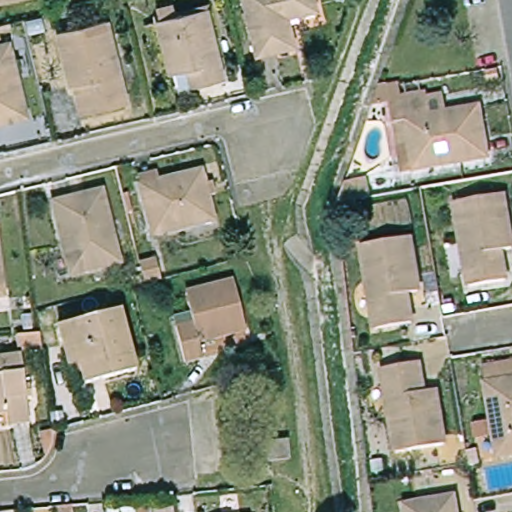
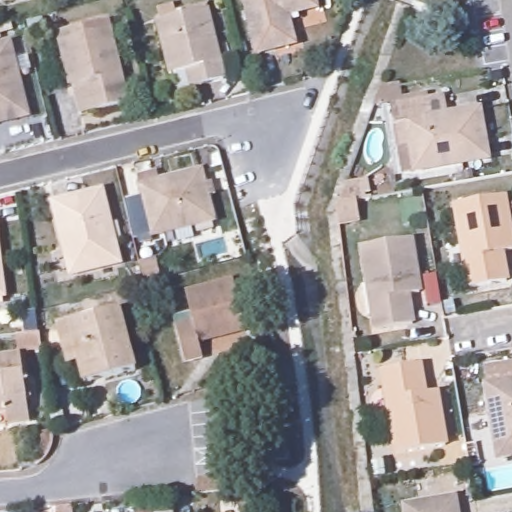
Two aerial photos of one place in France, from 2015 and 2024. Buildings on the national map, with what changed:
unchanged [(246,0),(316,0),(318,9),(289,16),(297,44),(258,54),(246,0)]
unchanged [(225,76),(195,84),(190,65),(172,69),(160,19),(208,8),(225,76)]
unchanged [(30,36),(27,24),(43,20),(46,32),(30,36)]
unchanged [(128,104),(83,115),(75,85),(73,85),(60,32),(109,22),(128,104)]
unchanged [(9,32),(0,33),(0,25),(7,24),(9,32)]
unchanged [(0,120),(0,47),(5,46),(23,115),(0,120)]
unchanged [(376,105),(382,90),(402,87),(404,100),(376,105)]
unchanged [(412,148),(403,150),(396,107),(446,98),(449,117),(480,111),(487,159),(417,172),(412,148)]
unchanged [(204,185),(213,183),(216,195),(207,197),(213,221),(152,235),(141,187),(138,177),(157,174),(160,183),(201,173),(204,185)]
unchanged [(353,196),(352,184),(370,180),(372,192),(353,196)]
unchanged [(120,264),(70,275),(53,204),(102,192),(120,264)]
unchanged [(457,206),(505,197),(512,241),(512,251),(502,253),(507,282),(471,290),(457,206)]
unchanged [(420,295),(409,295),(414,326),(376,332),(362,247),(411,240),(420,295)]
unchanged [(145,285),(140,266),(157,261),(161,281),(145,285)]
unchanged [(0,297),(0,273),(3,297),(0,297)]
unchanged [(246,326),(198,337),(202,355),(184,359),(174,312),(191,308),(186,287),(235,276),(246,326)]
unchanged [(136,367),(85,380),(80,360),(68,363),(59,322),(120,306),(136,367)]
unchanged [(42,352),(20,353),(18,337),(40,335),(42,352)]
unchanged [(8,426),(6,414),(0,415),(0,359),(21,356),(30,422),(8,426)]
unchanged [(470,422),(489,419),(480,363),(512,358),(512,454),(495,457),(492,432),(472,436),(470,422)]
unchanged [(425,395),(438,393),(447,447),(398,456),(384,371),(420,365),(425,395)]
unchanged [(290,462),(270,463),(267,445),(287,443),(290,462)]
unchanged [(457,512),(408,512),(407,507),(455,500),(457,512)]

